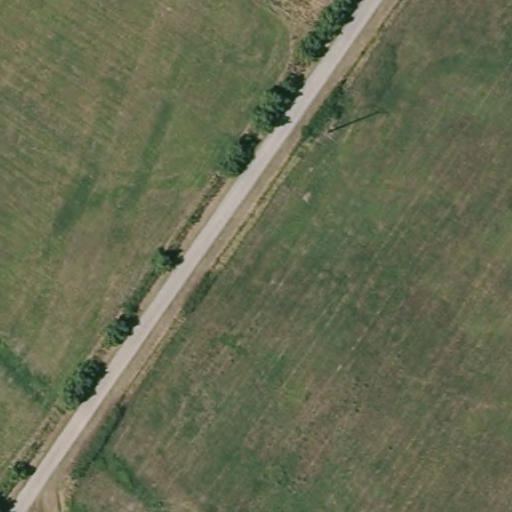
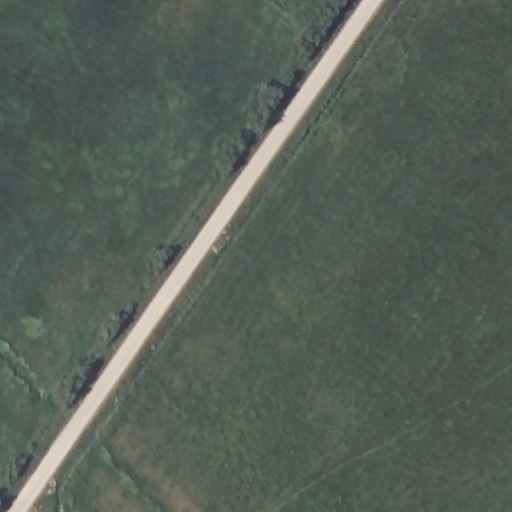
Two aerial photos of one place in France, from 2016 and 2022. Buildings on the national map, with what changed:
[]

